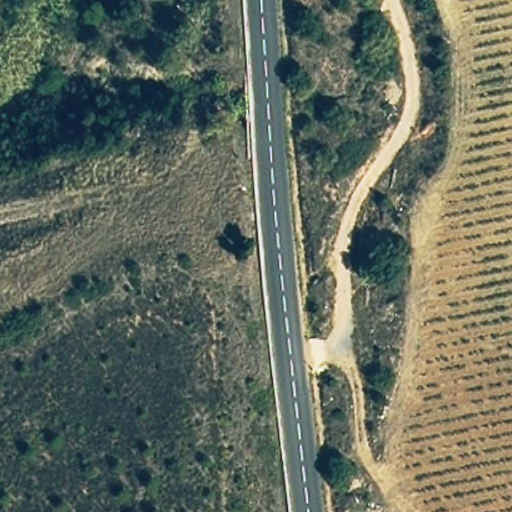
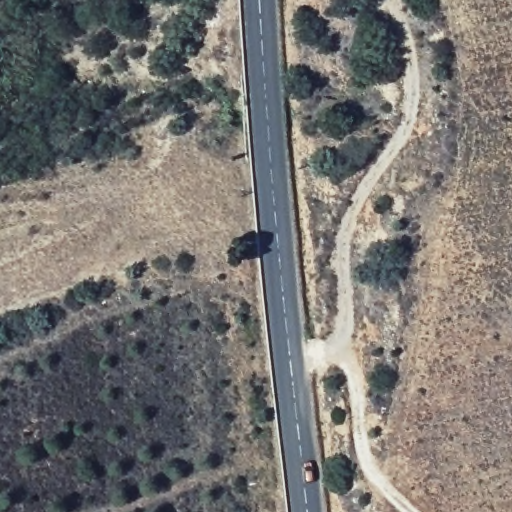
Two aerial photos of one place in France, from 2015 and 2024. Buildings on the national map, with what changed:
[]

